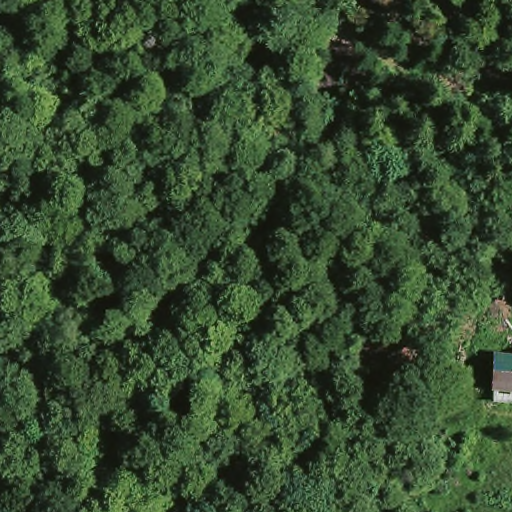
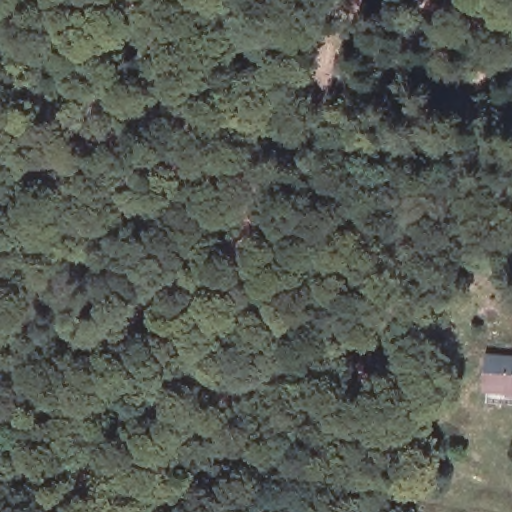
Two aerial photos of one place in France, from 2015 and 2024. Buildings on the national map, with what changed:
unchanged [(512,354),(512,406),(486,403),(488,393),(482,393),(487,353),(512,354)]

